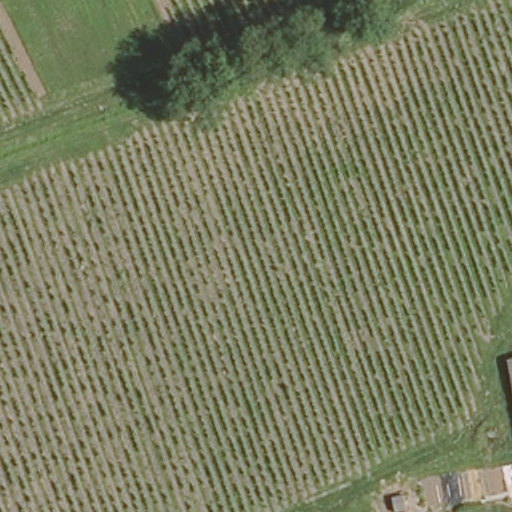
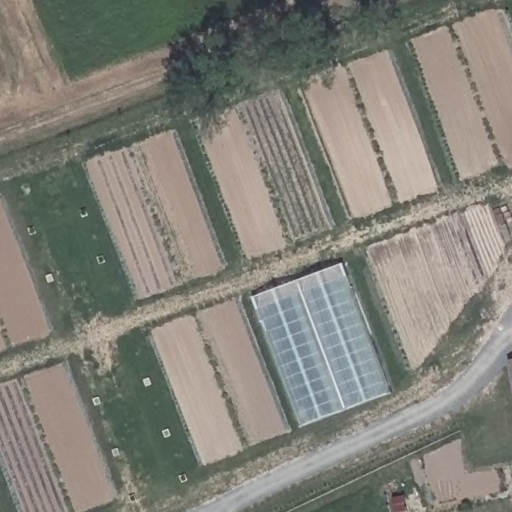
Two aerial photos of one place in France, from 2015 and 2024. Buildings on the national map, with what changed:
new [(255,297),(344,262),(393,392),(301,427),(255,297)]
unchanged [(512,354),(512,384),(507,355),(512,354)]

